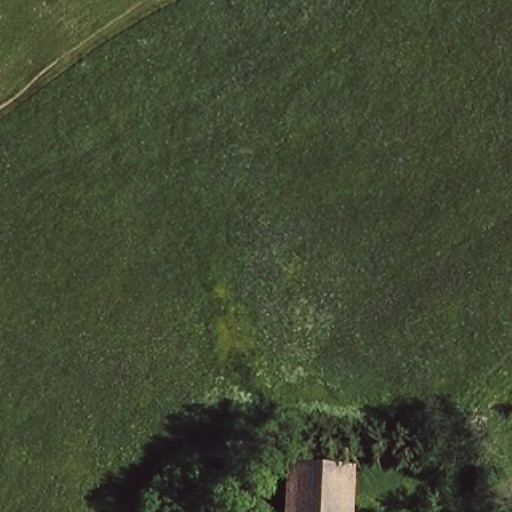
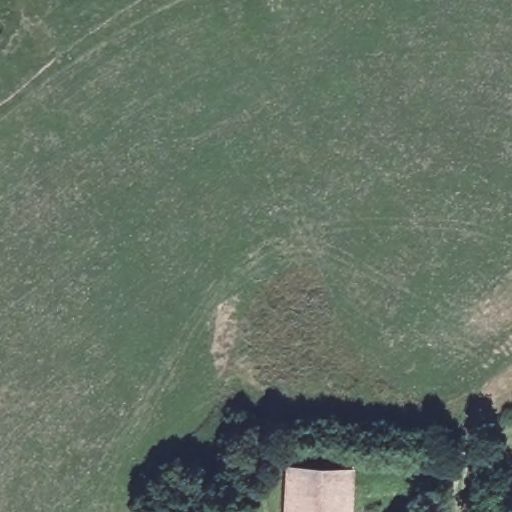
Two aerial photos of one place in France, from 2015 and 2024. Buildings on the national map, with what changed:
unchanged [(257,456),(256,427),(294,429),(294,458),(289,458),(257,456)]
unchanged [(353,512),(288,512),(289,458),(294,458),(354,460),(353,512)]

